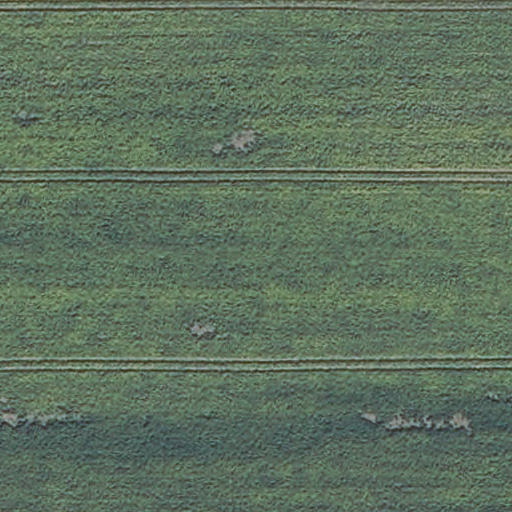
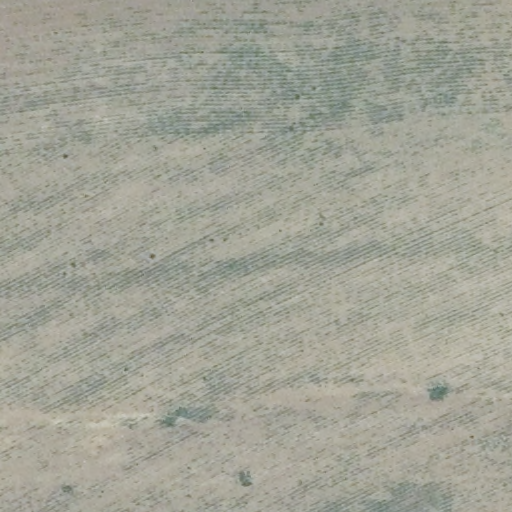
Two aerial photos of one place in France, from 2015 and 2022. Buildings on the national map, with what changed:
[]

